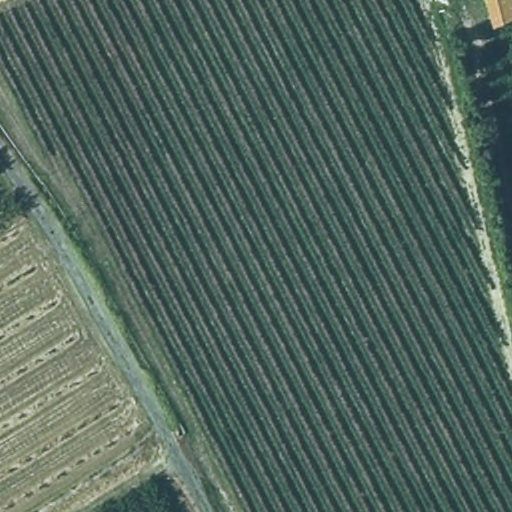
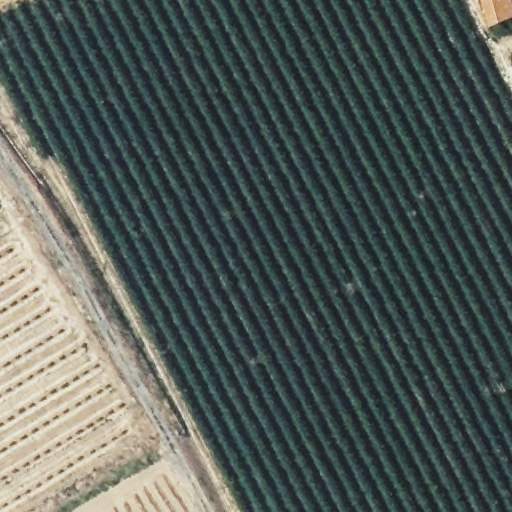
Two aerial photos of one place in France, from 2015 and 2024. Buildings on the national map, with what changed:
unchanged [(491,26),(482,0),(512,0),(512,18),(491,26)]

